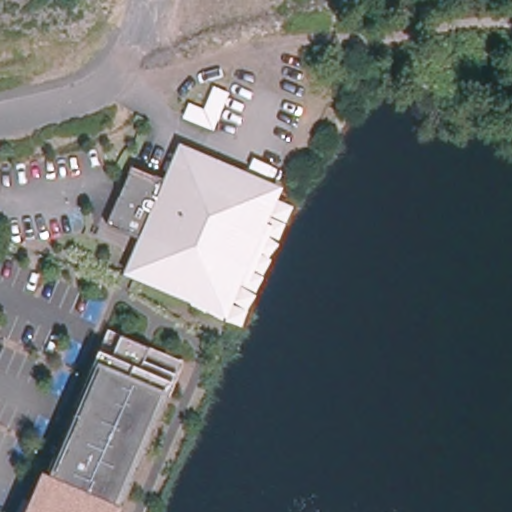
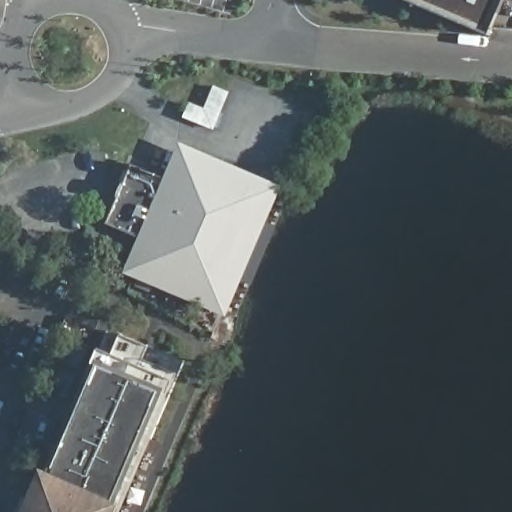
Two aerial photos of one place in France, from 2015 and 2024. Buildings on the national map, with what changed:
new [(405,0),(504,0),(489,36),(405,0)]
unchanged [(159,175),(173,143),(281,185),(224,318),(120,276),(135,237),(108,227),(131,164),(159,175)]
unchanged [(107,332),(181,362),(173,381),(166,392),(116,512),(22,512),(40,470),(51,474),(94,364),(99,349),(107,332)]

